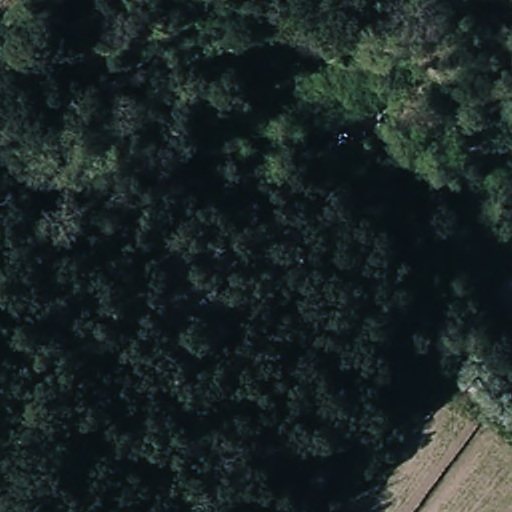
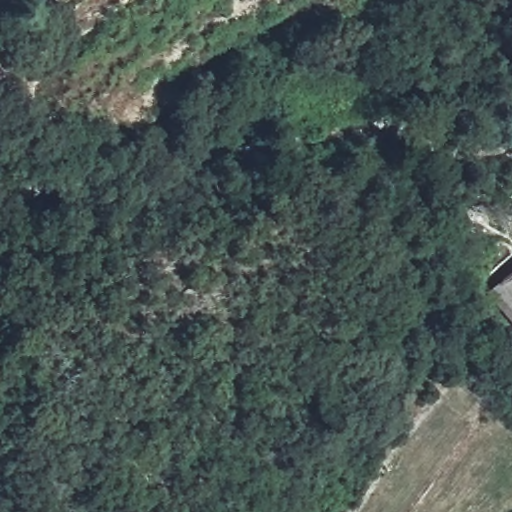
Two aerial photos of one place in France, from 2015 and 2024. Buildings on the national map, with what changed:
unchanged [(495,293),(512,273),(512,308),(495,293)]
unchanged [(488,299),(495,293),(512,308),(512,322),(488,299)]

